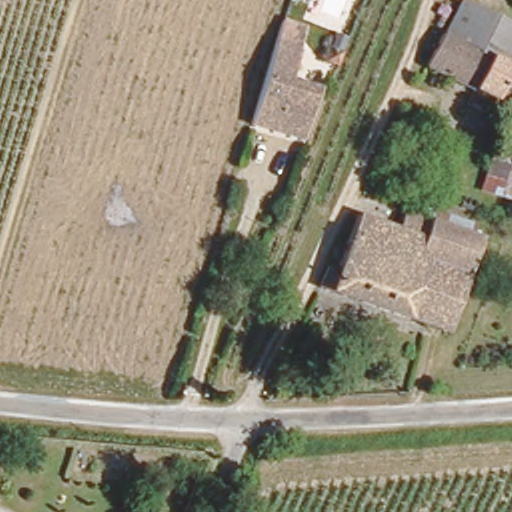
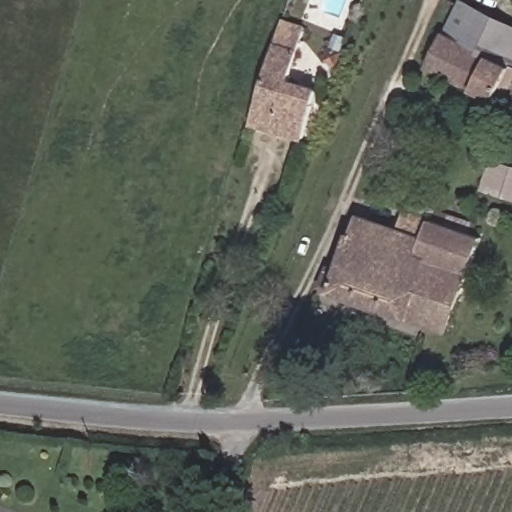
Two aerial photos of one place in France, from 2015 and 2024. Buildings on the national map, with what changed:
unchanged [(469,0),(512,21),(512,60),(445,26),(458,0),(469,0)]
unchanged [(303,23),(286,78),(315,86),(300,136),(247,122),(279,16),(303,23)]
unchanged [(512,60),(512,70),(498,96),(426,60),(442,25),(444,26),(445,26),(512,60)]
unchanged [(321,55),(324,44),(338,48),(334,60),(321,55)]
unchanged [(512,146),(512,199),(477,188),(492,140),(512,146)]
unchanged [(326,264),(338,267),(355,213),(392,224),(398,206),(477,232),(447,328),(319,286),(326,264)]

